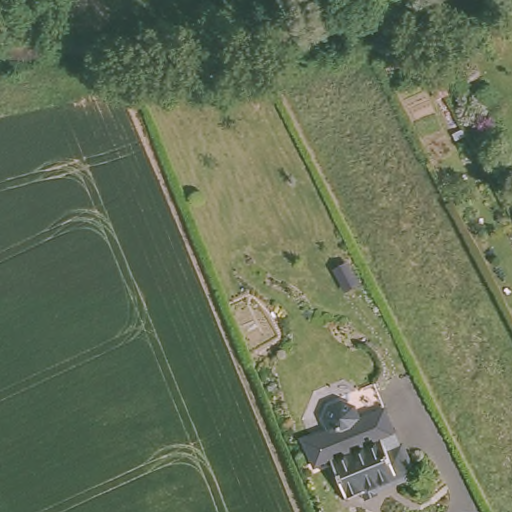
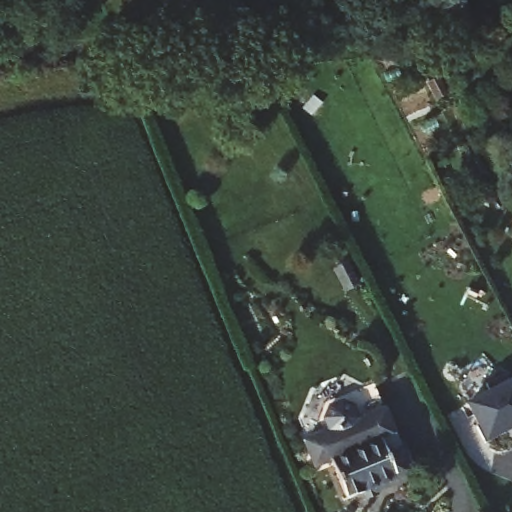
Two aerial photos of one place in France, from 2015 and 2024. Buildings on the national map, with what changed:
new [(507,438),(485,449),(477,432),(480,431),(469,409),(490,398),(486,389),(509,378),(512,383),(512,432),(505,436),(507,438)]
unchanged [(397,444),(385,449),(379,436),(328,457),(331,464),(315,469),(303,441),(327,429),(323,419),(328,409),(345,402),(355,408),(360,418),(387,406),(397,444)]
unchanged [(385,449),(397,444),(408,470),(344,496),(331,464),(328,457),(379,436),(385,449)]

